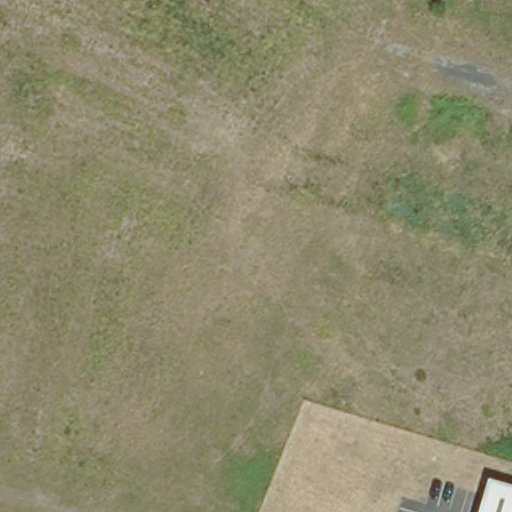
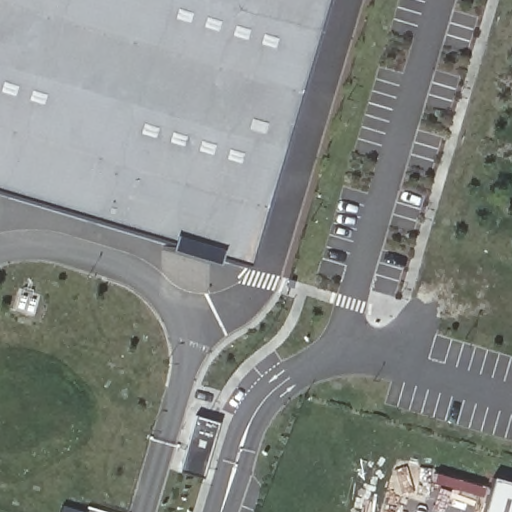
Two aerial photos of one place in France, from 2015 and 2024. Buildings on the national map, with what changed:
new [(0,195),(0,0),(320,0),(242,263),(0,195)]
new [(202,477),(180,471),(195,416),(217,422),(202,477)]
unchanged [(512,483),(512,512),(475,512),(487,475),(512,483)]

